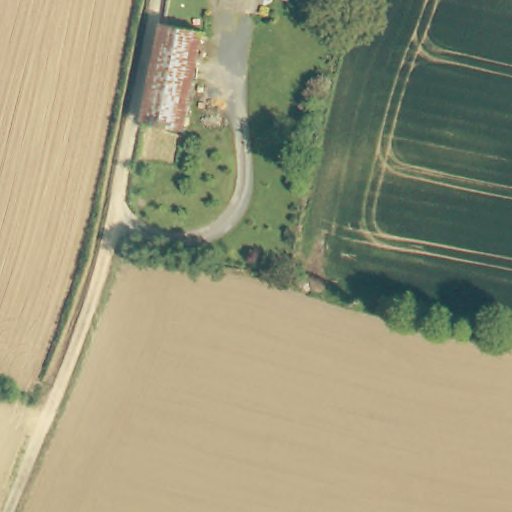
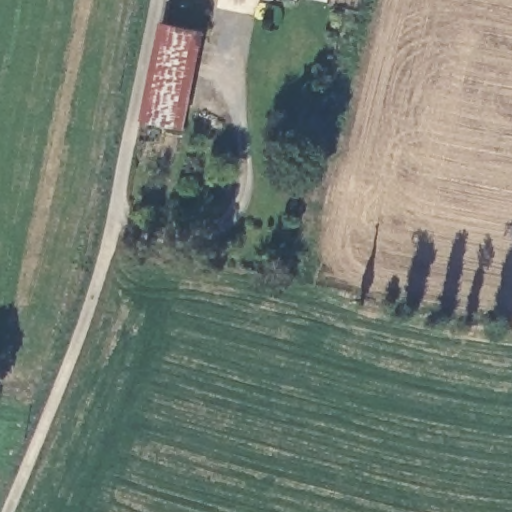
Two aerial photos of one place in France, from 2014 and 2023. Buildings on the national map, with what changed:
unchanged [(258,5),(255,17),(239,12),(243,1),(241,0),(274,0),(272,9),(258,5)]
unchanged [(297,10),(294,21),(286,18),(289,8),(283,7),(285,0),(305,0),(302,12),(297,10)]
unchanged [(313,0),(335,0),(331,17),(310,13),(313,0)]
unchanged [(209,30),(191,121),(153,113),(171,22),(209,30)]

